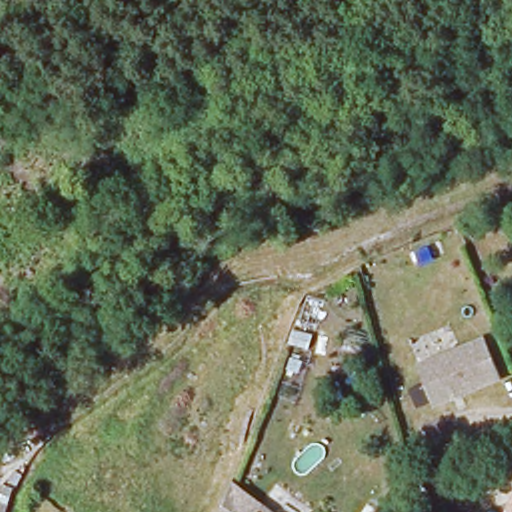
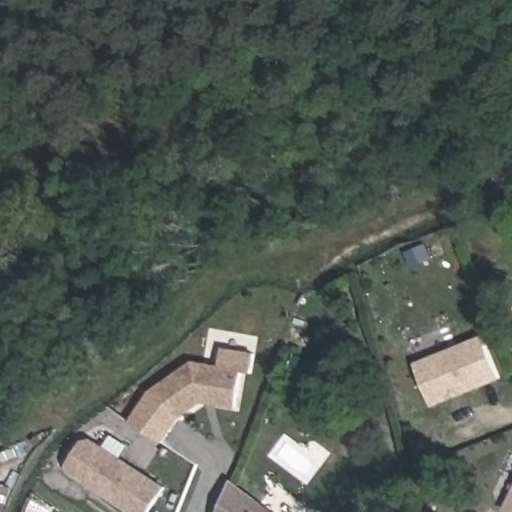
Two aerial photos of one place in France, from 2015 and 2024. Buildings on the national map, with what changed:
unchanged [(434,404),(422,362),(480,344),(495,386),(434,404)]
new [(237,409),(201,403),(179,420),(164,442),(132,422),(149,393),(195,361),(243,368),(237,409)]
new [(127,512),(129,510),(72,474),(69,464),(83,441),(94,438),(167,487),(150,512),(127,512)]
unchanged [(272,512),(222,512),(234,484),(272,512)]
unchanged [(10,512),(0,509),(0,503),(6,487),(20,492),(12,512),(10,512)]

